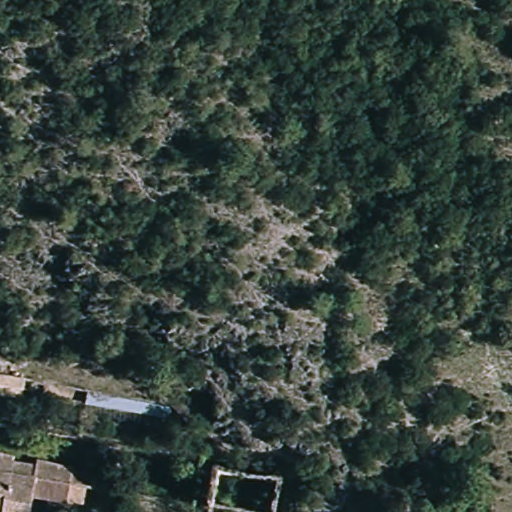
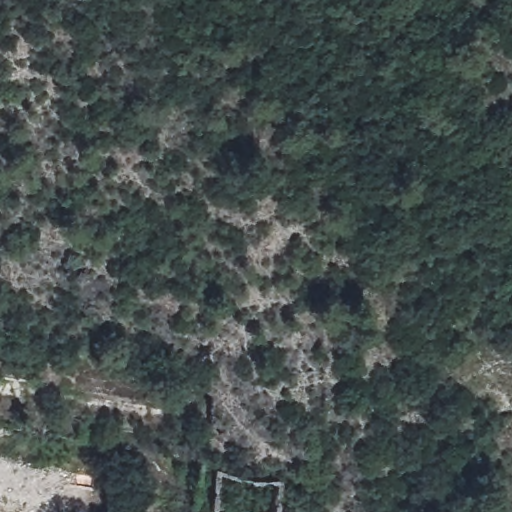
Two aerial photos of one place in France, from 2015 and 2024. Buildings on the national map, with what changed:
unchanged [(22,404),(0,401),(0,384),(24,388),(22,404)]
unchanged [(68,495),(33,490),(29,512),(0,512),(0,451),(9,452),(7,462),(37,467),(39,456),(73,462),(68,495)]

